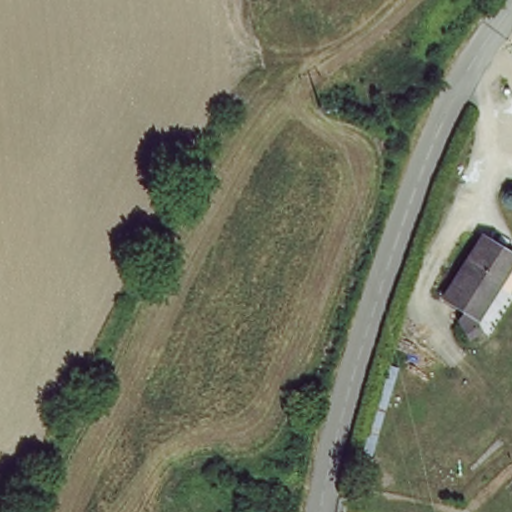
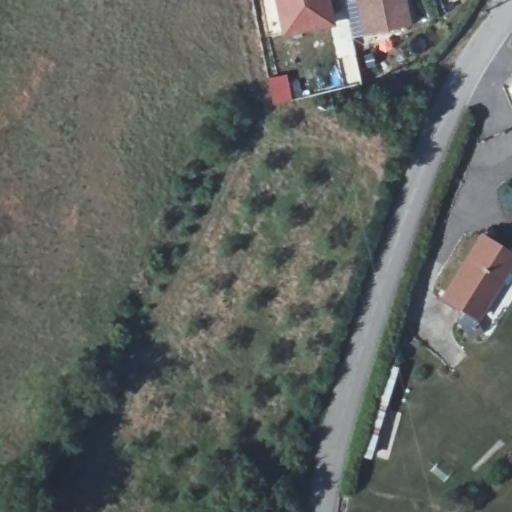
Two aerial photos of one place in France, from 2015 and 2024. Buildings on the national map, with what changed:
new [(333,27),(283,37),(276,0),(328,0),(333,27)]
new [(357,0),(406,0),(412,25),(364,35),(357,0)]
unchanged [(475,318),(442,296),(479,238),(510,257),(491,285),(495,288),(475,318)]
unchanged [(512,255),(512,259),(510,257),(512,255)]

